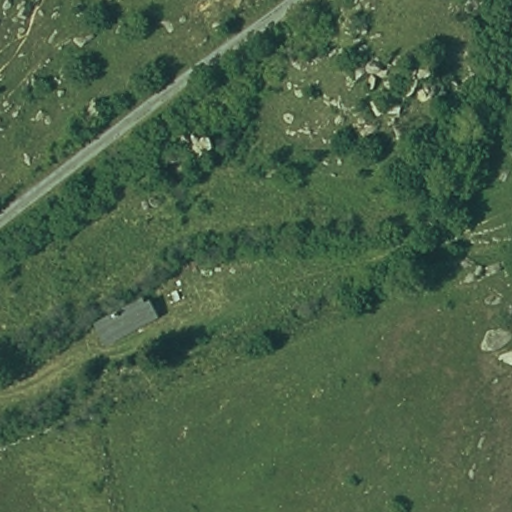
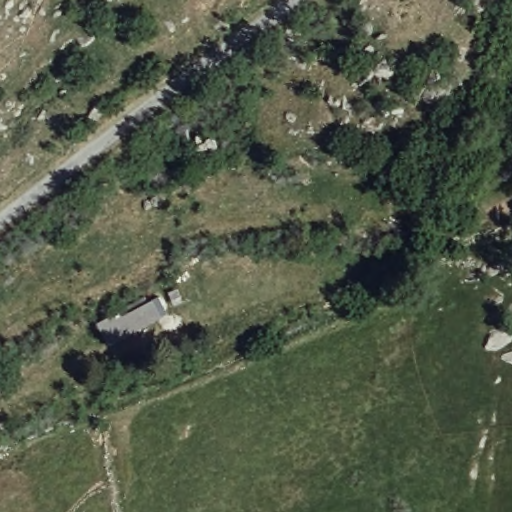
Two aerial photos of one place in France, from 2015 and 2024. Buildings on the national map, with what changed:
unchanged [(95,323),(120,308),(123,314),(152,298),(164,317),(110,349),(95,323)]

